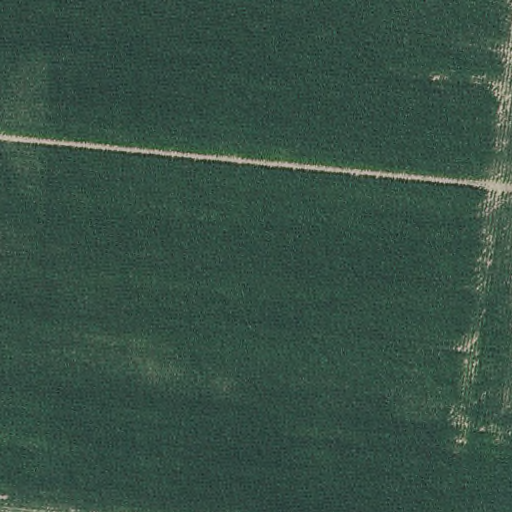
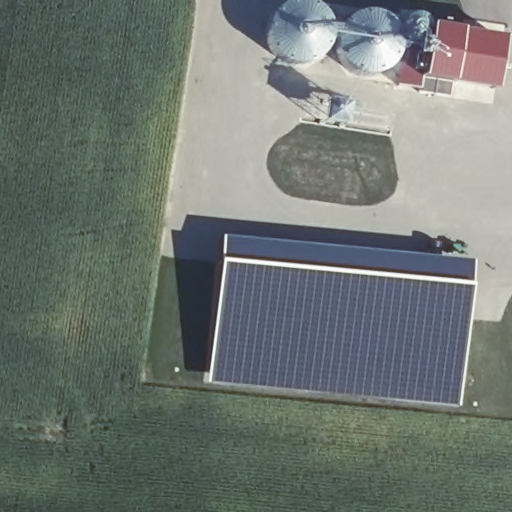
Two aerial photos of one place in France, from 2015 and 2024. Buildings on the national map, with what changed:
new [(401,40),(397,42),(397,49),(395,56),(391,62),(387,69),(379,74),(370,77),(362,77),(354,75),(346,72),(339,65),(335,59),(334,52),(332,44),(327,44),(320,54),(315,60),(309,63),(301,65),(293,65),(284,64),(279,61),(272,56),(267,48),(264,40),(263,32),(264,24),(267,17),(272,11),(279,5),(287,2),(297,1),(307,2),(315,7),(321,12),(325,19),(327,26),(337,27),(342,19),(348,15),(356,12),(365,11),(373,12),(381,15),(388,21),(392,27),(397,25),(400,21),(403,17),(409,16),(414,16),(420,19),(424,25),(425,31),(423,37),(419,41),(415,42),(410,42),(401,40)]
new [(448,97),(418,92),(418,88),(395,85),(402,44),(424,46),(427,26),(459,31),(500,37),(494,91),(450,85),(448,97)]
new [(457,408),(205,385),(222,239),(470,263),(457,408)]

